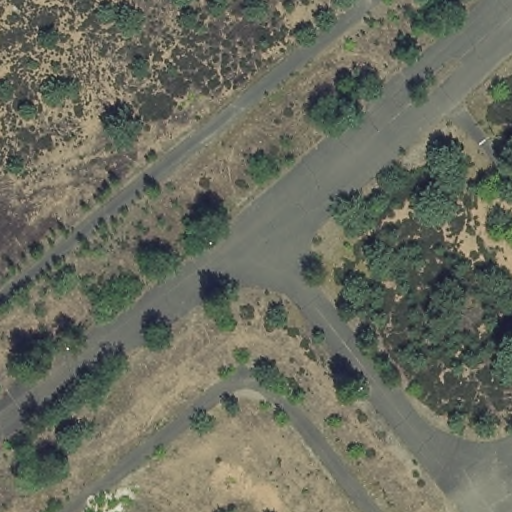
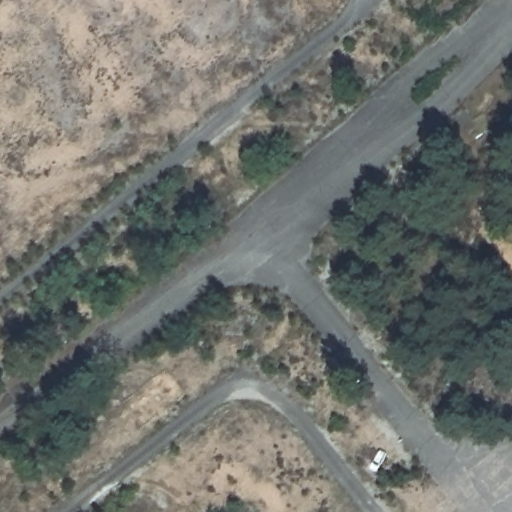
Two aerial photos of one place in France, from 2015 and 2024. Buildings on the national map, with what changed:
unchanged [(493,201),(493,186),(512,168),(512,230),(501,214),(493,201)]

